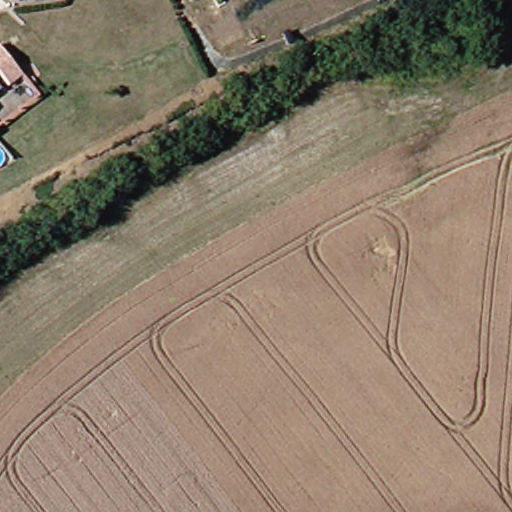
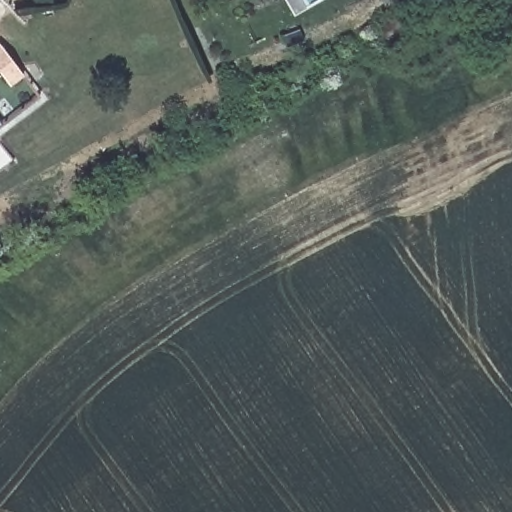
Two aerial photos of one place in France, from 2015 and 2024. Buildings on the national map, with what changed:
unchanged [(9,82),(0,70),(0,42),(0,41),(23,72),(9,82)]

